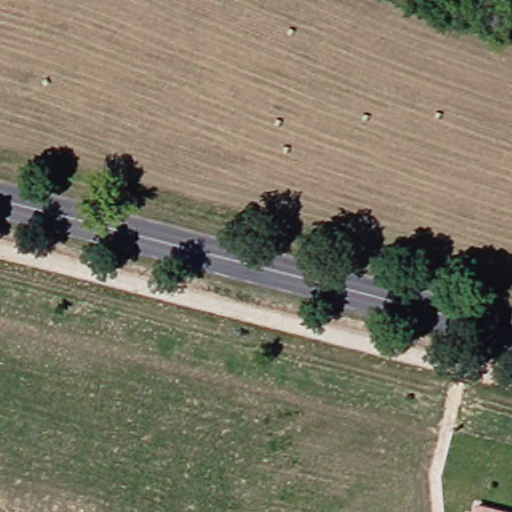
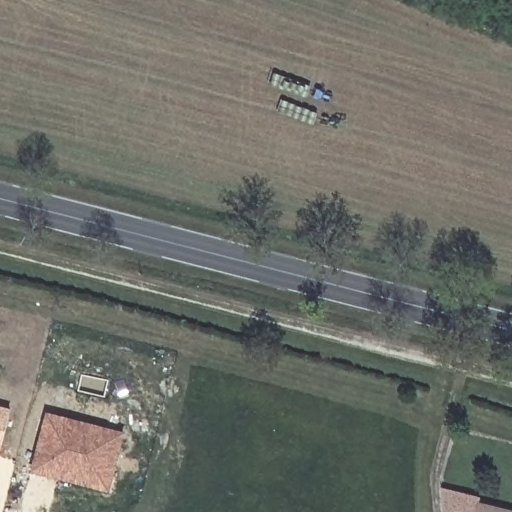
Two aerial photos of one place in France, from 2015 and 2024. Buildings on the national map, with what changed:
new [(11,410),(0,459),(0,407),(11,410)]
new [(47,413),(125,433),(110,494),(32,473),(47,413)]
unchanged [(512,510),(512,512),(475,512),(478,501),(512,510)]

